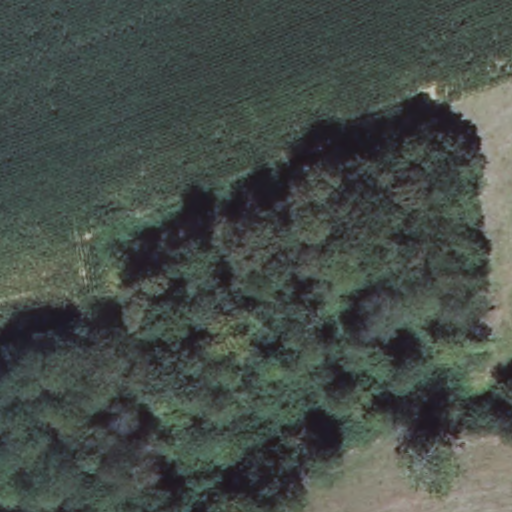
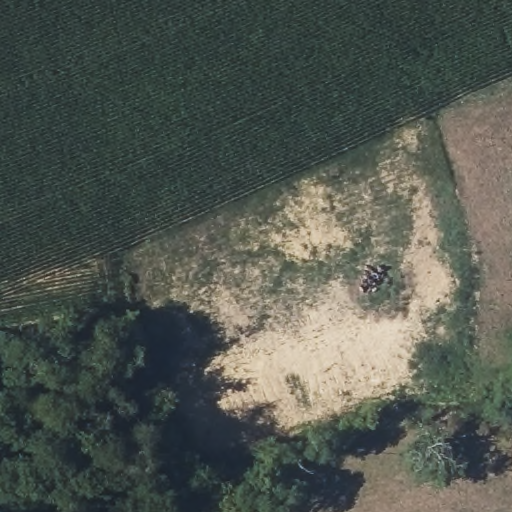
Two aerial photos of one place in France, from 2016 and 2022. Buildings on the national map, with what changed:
[]

